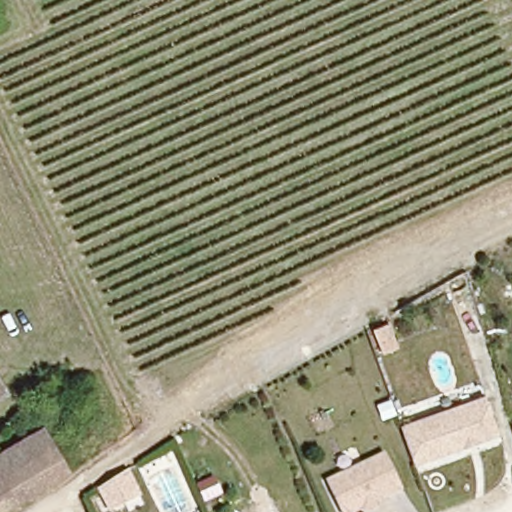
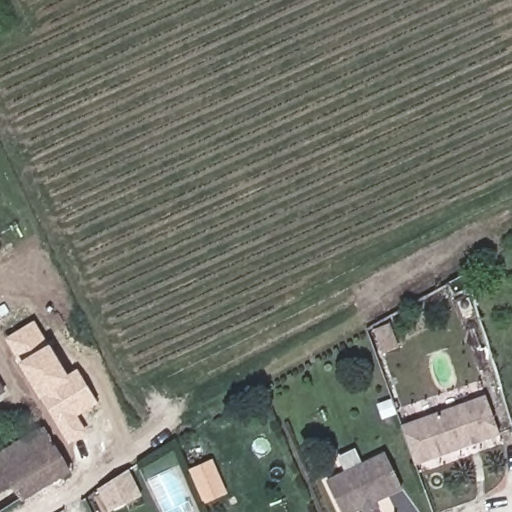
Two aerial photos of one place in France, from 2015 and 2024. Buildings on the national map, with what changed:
new [(78,415),(88,432),(69,443),(41,397),(40,397),(18,362),(20,361),(5,338),(35,320),(49,345),(50,343),(68,375),(77,369),(98,403),(78,415)]
unchanged [(4,392),(0,394),(0,385),(4,392)]
unchanged [(398,425),(483,395),(496,430),(411,460),(398,425)]
unchanged [(2,482),(0,479),(0,459),(43,434),(67,476),(6,512),(0,512),(0,483),(2,482)]
unchanged [(360,505),(345,512),(341,512),(325,481),(382,452),(399,485),(373,498),(376,503),(363,510),(360,505)]
new [(126,470),(139,497),(108,511),(97,487),(126,470)]

